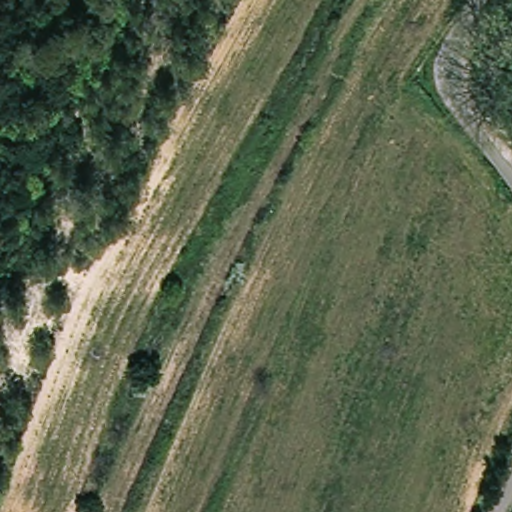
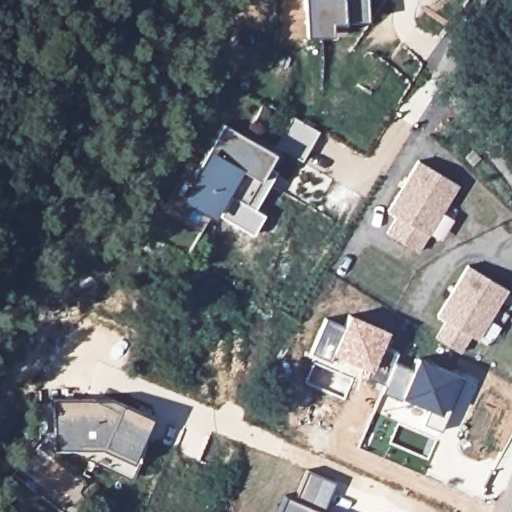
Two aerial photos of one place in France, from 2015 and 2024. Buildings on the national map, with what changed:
new [(368,22),(352,22),(343,38),(332,32),(332,35),(308,36),(307,0),(368,0),(368,22)]
new [(291,121),(316,137),(298,166),(273,150),(291,121)]
new [(258,180),(245,204),(225,195),(212,218),(180,201),(208,151),(221,124),(273,153),(258,180)]
new [(419,253),(385,233),(395,216),(386,211),(417,160),(459,186),(427,236),(419,253)]
new [(466,266),(508,291),(477,341),(471,337),(460,354),(434,338),(444,321),(436,316),(466,266)]
new [(342,326),(347,312),(387,329),(380,344),(369,369),(367,368),(331,353),(329,360),(310,352),(324,318),(342,326)]
new [(392,361),(410,368),(415,355),(453,372),(462,377),(439,429),(422,421),(426,406),(399,394),(398,398),(381,390),(384,383),(365,374),(367,368),(369,369),(380,344),(396,352),(392,361)]
new [(110,400),(152,418),(132,463),(101,449),(55,450),(54,401),(110,400)]
new [(306,470),(333,482),(321,511),(325,512),(277,512),(284,495),(293,499),(306,470)]

